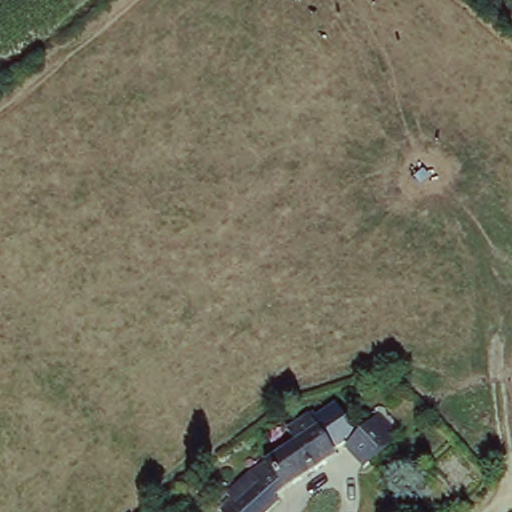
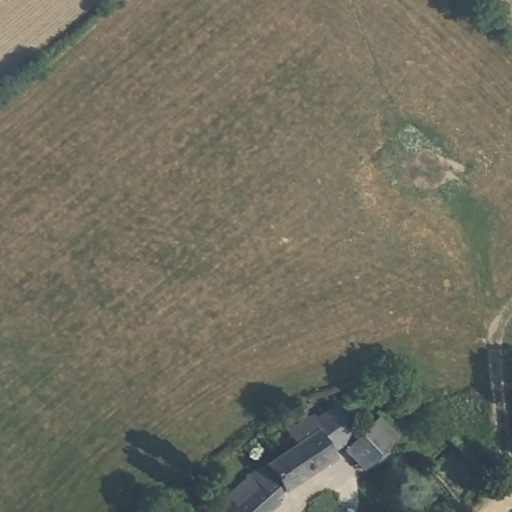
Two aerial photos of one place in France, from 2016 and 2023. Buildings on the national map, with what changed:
unchanged [(248,465),(291,443),(286,430),(311,418),(337,463),(275,496),(278,503),(267,512),(215,512),(214,511),(255,480),(248,465)]
unchanged [(388,450),(362,470),(347,448),(379,423),(396,444),(388,450)]

